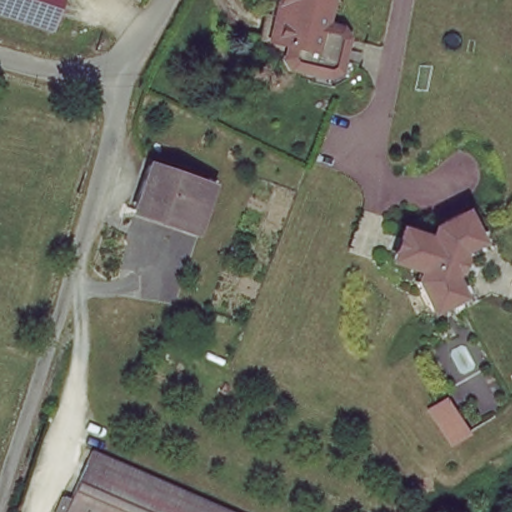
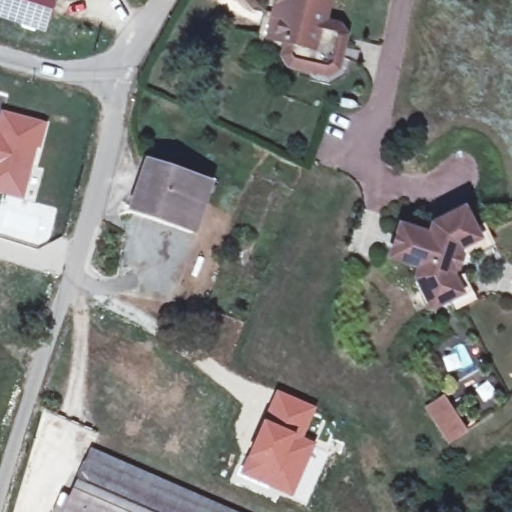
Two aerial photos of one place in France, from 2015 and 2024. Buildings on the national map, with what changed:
unchanged [(0,18),(0,0),(61,0),(49,35),(0,18)]
unchanged [(321,21),(335,24),(340,31),(332,61),(325,66),(289,57),(285,50),(287,38),(260,32),(267,0),(326,0),(321,21)]
new [(0,135),(7,137),(12,119),(46,127),(40,148),(37,147),(27,187),(0,180),(0,135)]
unchanged [(205,189),(190,234),(128,212),(143,167),(205,189)]
unchanged [(425,311),(412,281),(417,269),(395,261),(388,258),(399,230),(406,233),(428,241),(433,230),(463,217),(471,233),(475,244),(457,252),(455,257),(457,257),(458,260),(452,275),(449,277),(447,276),(445,281),(453,299),(442,303),(425,311)]
new [(274,389),(316,407),(303,438),(316,443),(292,498),(237,475),(274,389)]
unchanged [(62,508),(83,458),(215,512),(51,512),(55,505),(62,508)]

